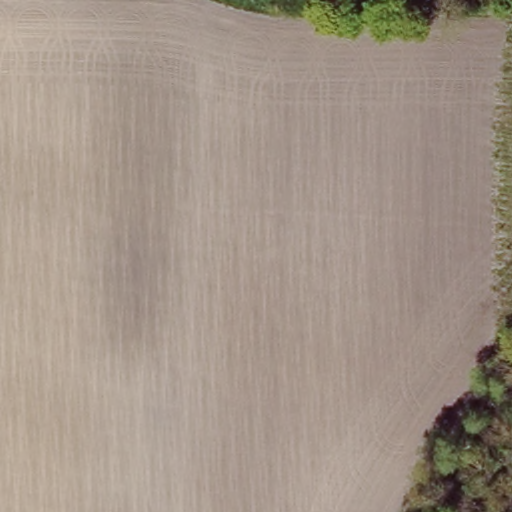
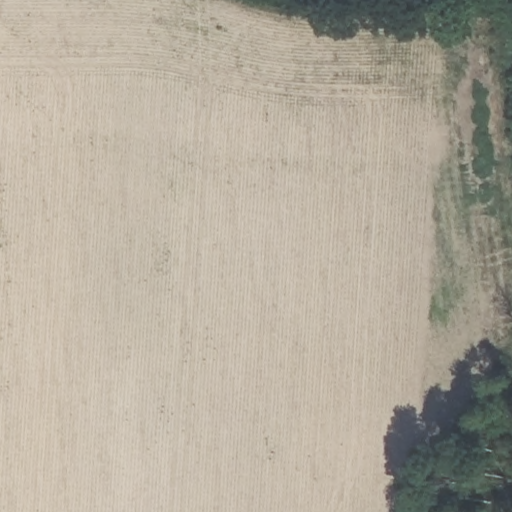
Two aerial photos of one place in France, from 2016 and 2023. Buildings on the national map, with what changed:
[]

